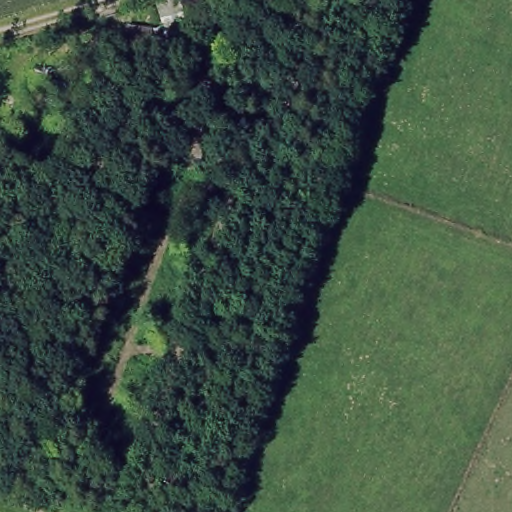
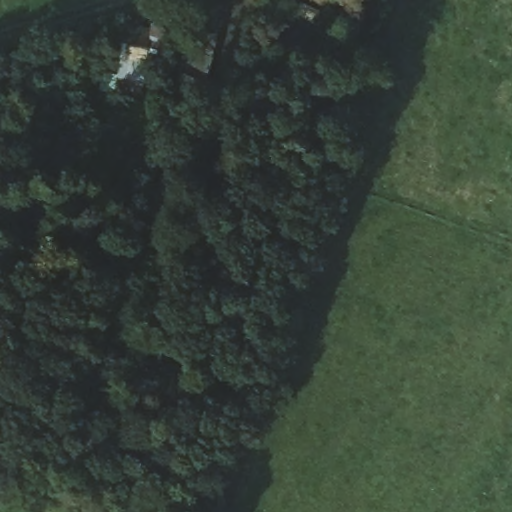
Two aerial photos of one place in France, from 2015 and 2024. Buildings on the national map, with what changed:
unchanged [(159,35),(150,2),(158,0),(185,0),(192,25),(159,35)]
unchanged [(208,57),(187,52),(192,25),(196,15),(217,20),(208,57)]
unchanged [(146,27),(139,80),(112,77),(120,23),(146,27)]

